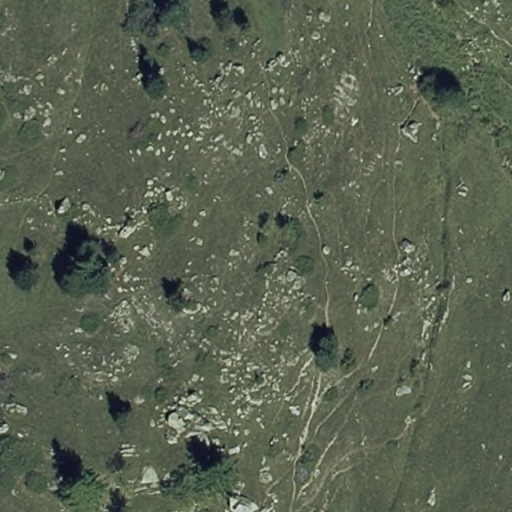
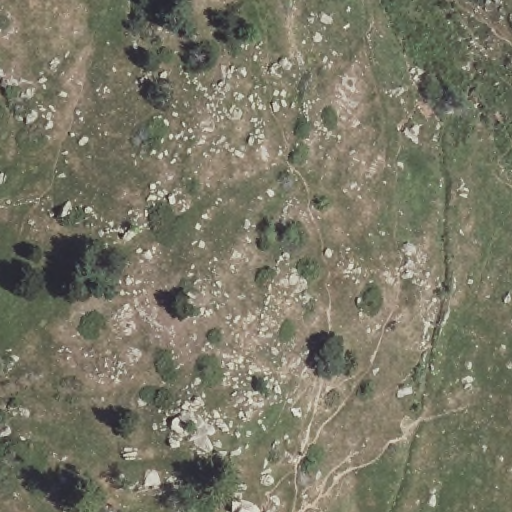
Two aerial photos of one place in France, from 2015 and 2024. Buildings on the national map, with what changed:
[]

